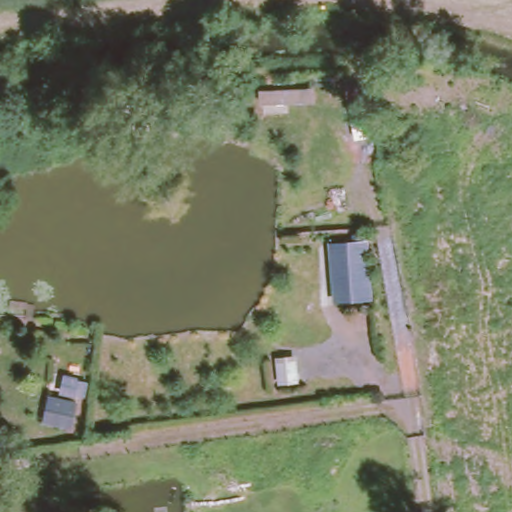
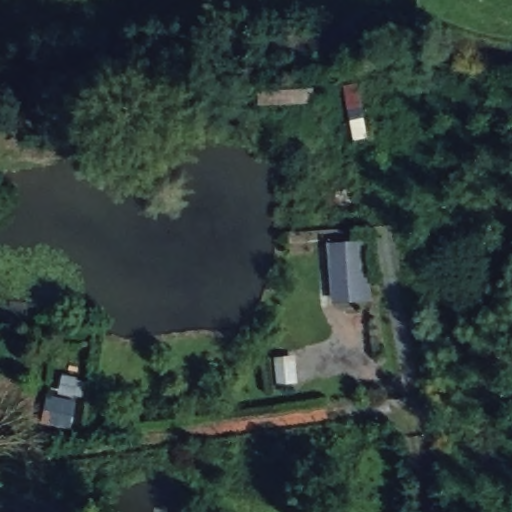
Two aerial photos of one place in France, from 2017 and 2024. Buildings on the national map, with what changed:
unchanged [(333,237),(369,236),(372,297),(338,300),(333,237)]

